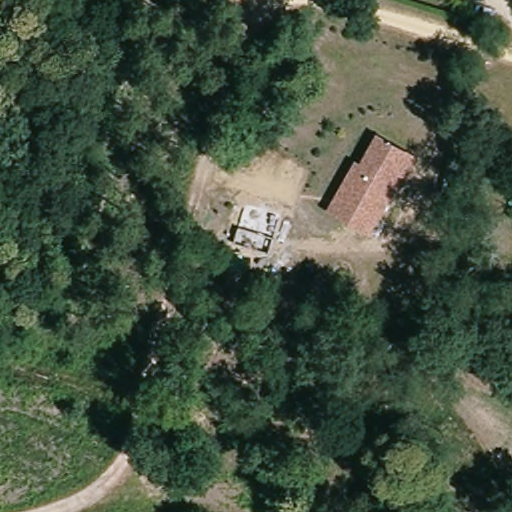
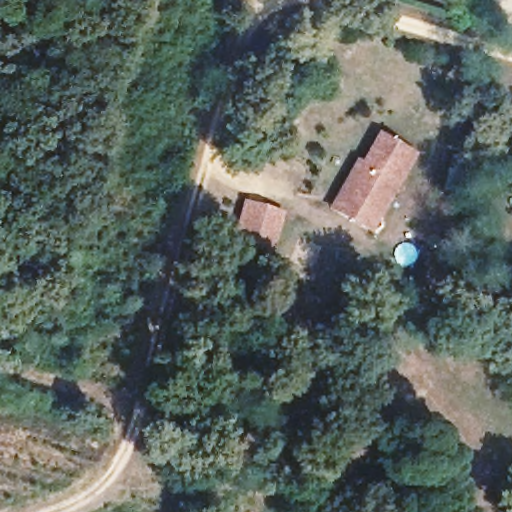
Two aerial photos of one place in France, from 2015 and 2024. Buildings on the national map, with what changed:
unchanged [(415,152),(369,234),(326,207),(353,158),(361,162),(377,131),(415,152)]
new [(249,204),(284,213),(278,235),(273,251),(238,241),(243,225),(249,204)]

